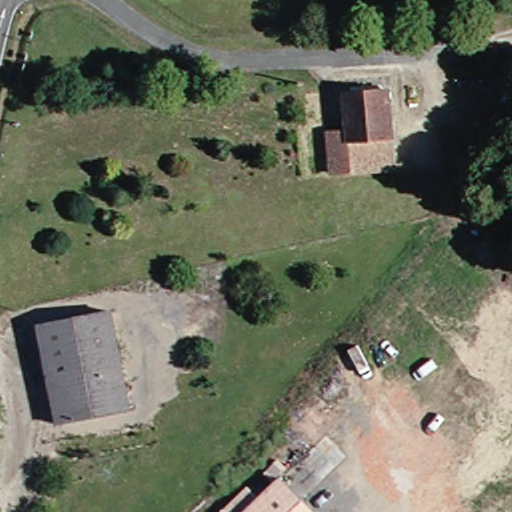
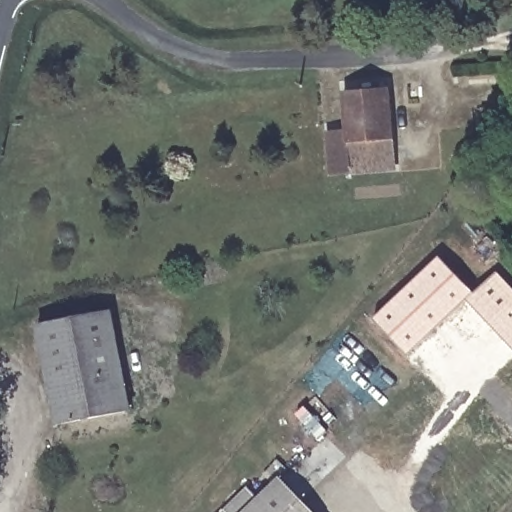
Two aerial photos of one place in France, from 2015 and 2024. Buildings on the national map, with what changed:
unchanged [(336,177),(331,137),(352,134),(348,94),(396,92),(402,171),(357,176),(336,177)]
unchanged [(512,129),(512,141),(492,142),(490,117),(511,116),(512,129)]
new [(466,299),(408,355),(374,319),(439,256),(474,293),(498,271),(512,287),(512,347),(466,299)]
unchanged [(62,424),(46,325),(119,313),(132,411),(62,424)]
unchanged [(291,494),(310,512),(275,512),(291,494)]
unchanged [(259,504),(269,512),(252,512),(259,504)]

